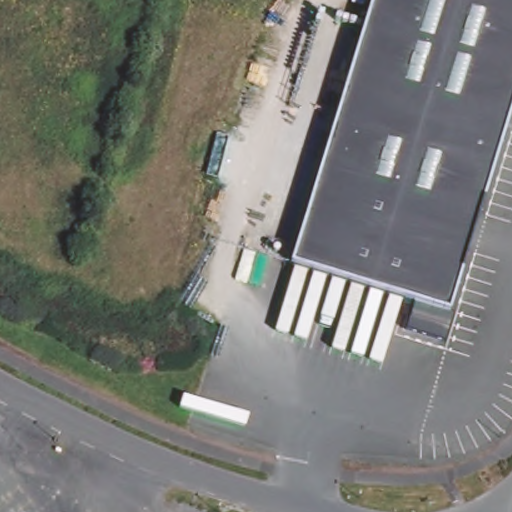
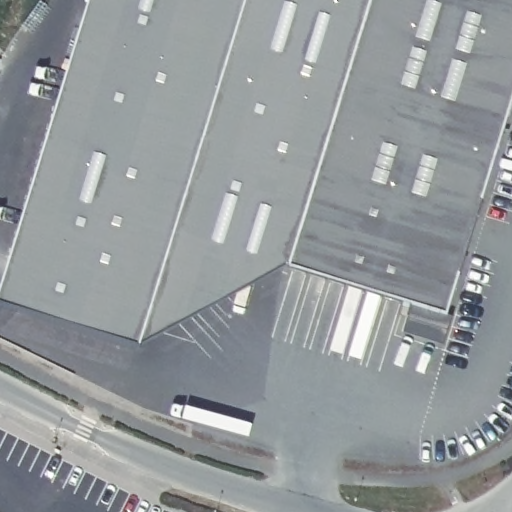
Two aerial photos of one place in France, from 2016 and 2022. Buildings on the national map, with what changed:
new [(0,301),(0,296),(91,0),(371,0),(289,265),(141,343),(0,301)]
unchanged [(371,0),(512,0),(512,104),(447,313),(289,265),(371,0)]

